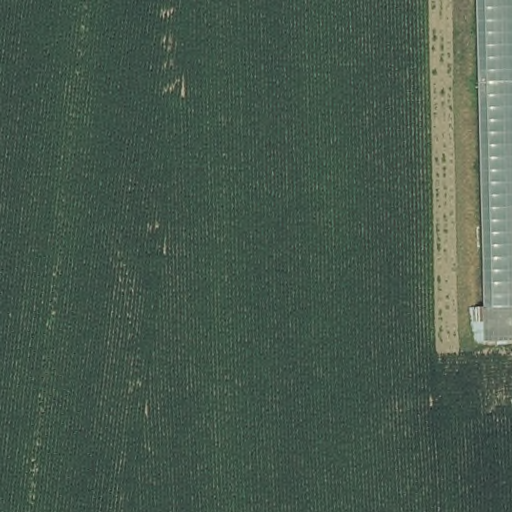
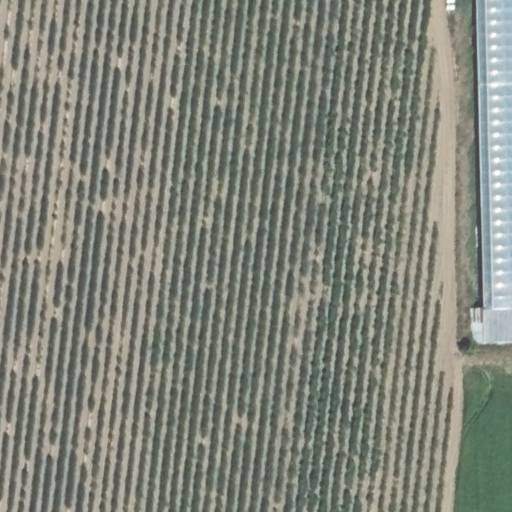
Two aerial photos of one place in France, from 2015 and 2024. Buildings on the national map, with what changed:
unchanged [(484,312),(478,0),(512,0),(512,311),(484,312)]

